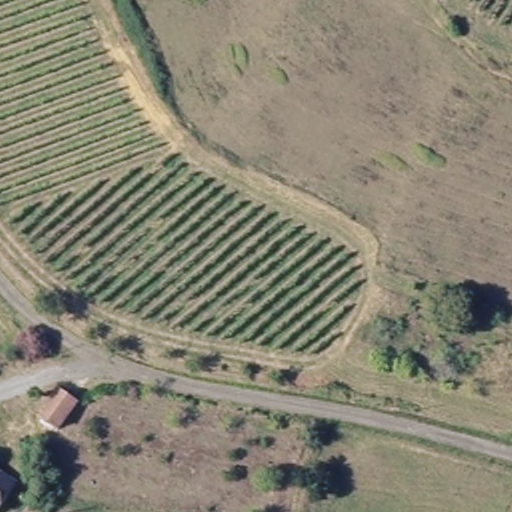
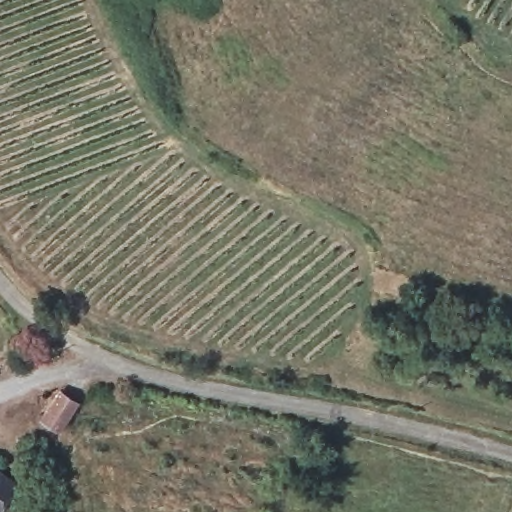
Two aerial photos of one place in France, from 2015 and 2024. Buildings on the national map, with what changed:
unchanged [(66,400),(71,403),(50,435),(29,421),(49,390),(66,400)]
unchanged [(4,512),(0,512),(0,472),(22,489),(4,512)]

